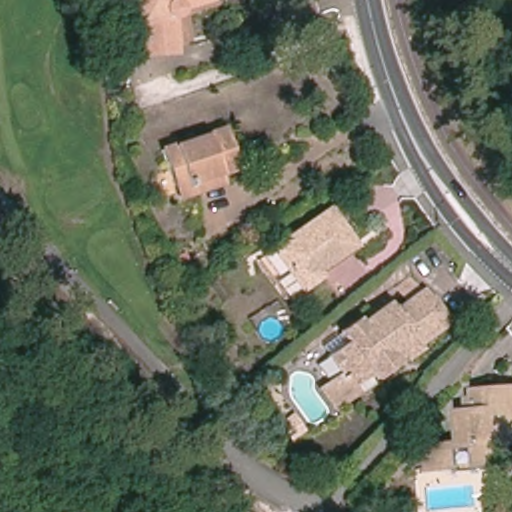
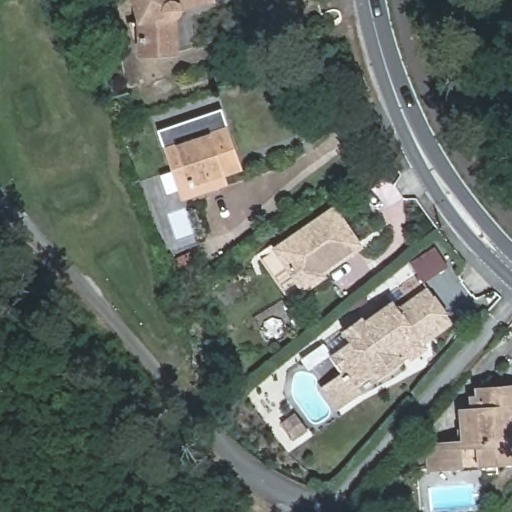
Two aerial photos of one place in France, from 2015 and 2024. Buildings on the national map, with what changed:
unchanged [(182,2),(180,6),(176,9),(172,10),(174,43),(141,44),(140,10),(137,0),(182,0),(182,2)]
unchanged [(183,192),(181,191),(172,165),(165,145),(161,133),(223,111),(228,123),(237,151),(242,163),(235,165),(223,169),(224,174),(224,178),(221,180),(192,189),(186,192),(183,192)]
unchanged [(321,270),(324,276),(303,290),(275,249),(333,209),(358,244),(321,270)]
unchanged [(324,383),(346,368),(334,351),(352,337),(345,326),(366,311),(369,314),(397,294),(403,302),(432,282),(438,290),(439,289),(458,314),(428,336),(433,344),(416,357),(413,352),(409,356),(382,375),(377,370),(361,380),(367,388),(340,406),(324,383)]
unchanged [(505,454),(505,461),(495,462),(494,454),(492,436),(475,438),(471,438),(468,405),(480,405),(478,392),(484,392),(483,384),(512,381),(512,453),(505,454)]
unchanged [(475,438),(492,436),(494,454),(495,462),(473,464),(472,458),(438,461),(436,441),(471,438),(475,438)]

